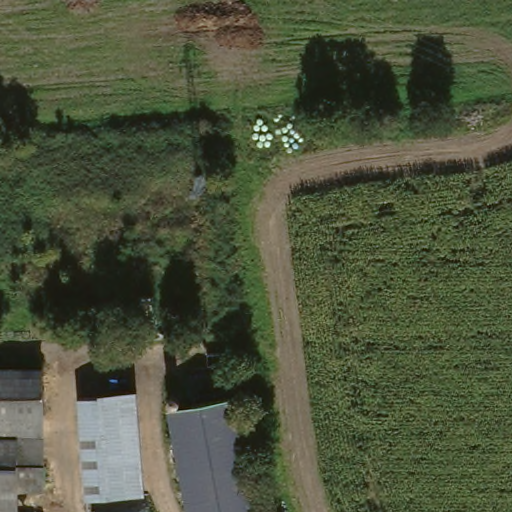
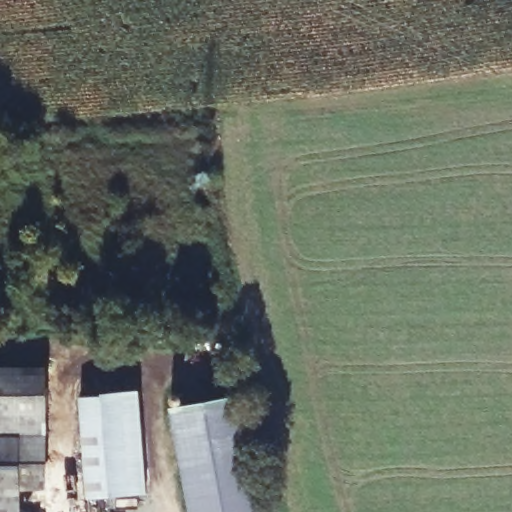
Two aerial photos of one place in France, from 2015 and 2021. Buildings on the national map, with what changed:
unchanged [(41,493),(14,495),(14,512),(0,512),(0,365),(40,365),(39,437),(41,493)]
unchanged [(278,512),(186,512),(168,409),(258,391),(278,512)]
unchanged [(147,490),(86,492),(82,400),(143,395),(147,490)]
unchanged [(22,494),(22,512),(14,512),(14,495),(22,494)]

